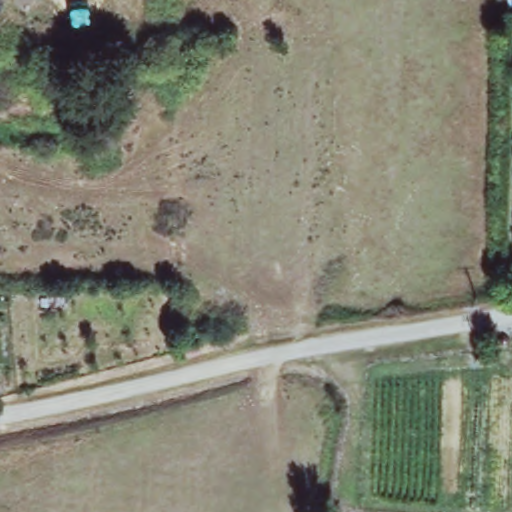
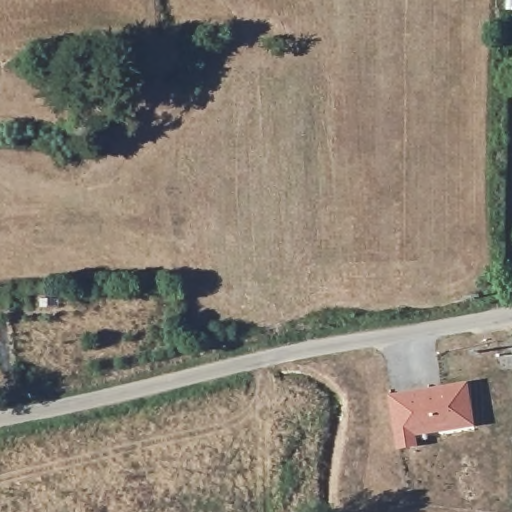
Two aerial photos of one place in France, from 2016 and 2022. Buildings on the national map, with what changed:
new [(400,448),(395,424),(390,397),(466,383),(474,423),(415,435),(417,445),(400,448)]

